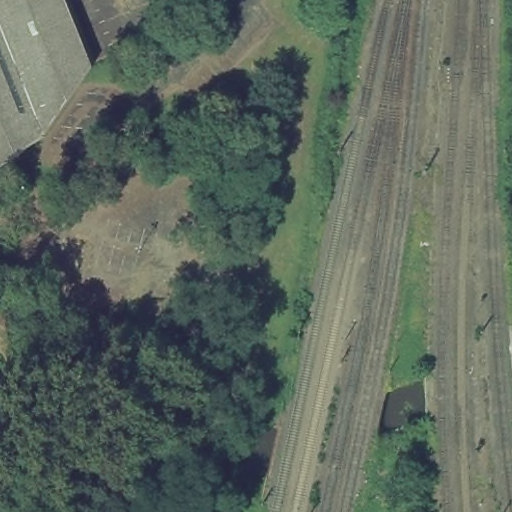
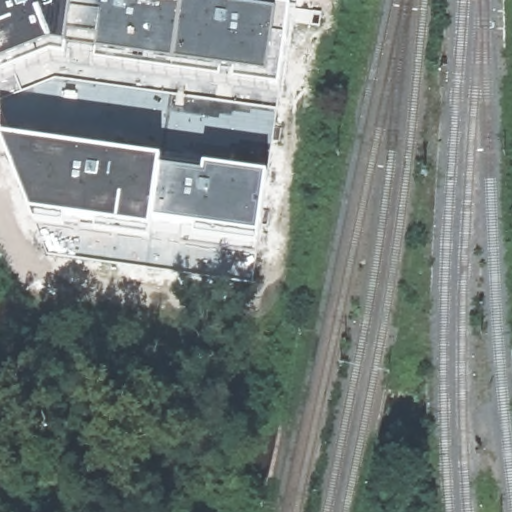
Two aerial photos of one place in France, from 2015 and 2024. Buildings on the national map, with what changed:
new [(58,74),(3,99),(0,92),(0,0),(242,0),(287,7),(278,99),(58,74)]
demolished [(0,163),(0,0),(68,0),(93,62),(37,152),(0,163)]
new [(32,219),(0,140),(0,133),(268,175),(265,244),(32,219)]
new [(19,265),(44,273),(40,287),(15,280),(19,265)]

